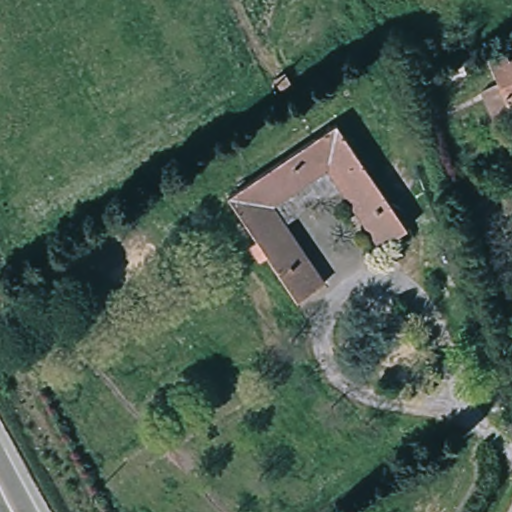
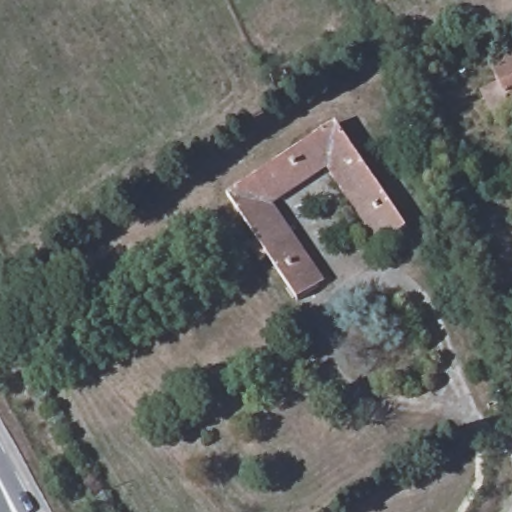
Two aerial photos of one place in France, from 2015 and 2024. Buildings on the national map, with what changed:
unchanged [(499,44),(504,57),(512,54),(512,98),(504,101),(510,117),(493,125),(477,88),(494,81),(480,52),(499,44)]
unchanged [(461,56),(468,70),(428,86),(422,73),(461,56)]
unchanged [(284,72),(290,83),(280,88),(274,77),(284,72)]
unchanged [(334,126),(406,231),(379,249),(325,172),(274,208),(325,285),(299,303),(228,198),(334,126)]

